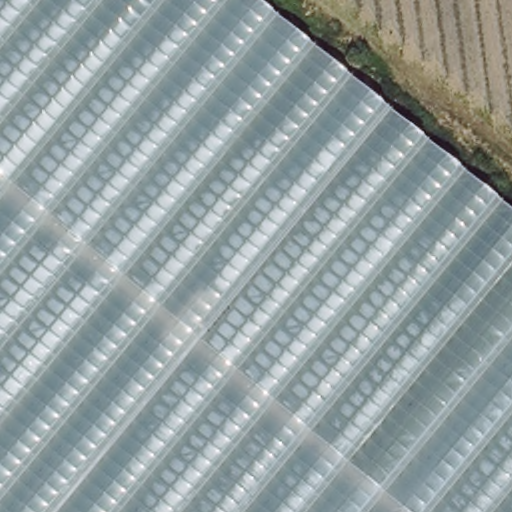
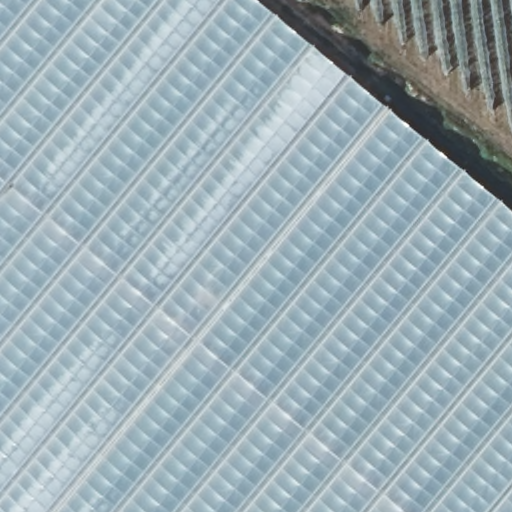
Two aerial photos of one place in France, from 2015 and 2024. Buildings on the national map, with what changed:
unchanged [(258,0),(512,211),(512,512),(0,512),(0,0),(258,0)]

